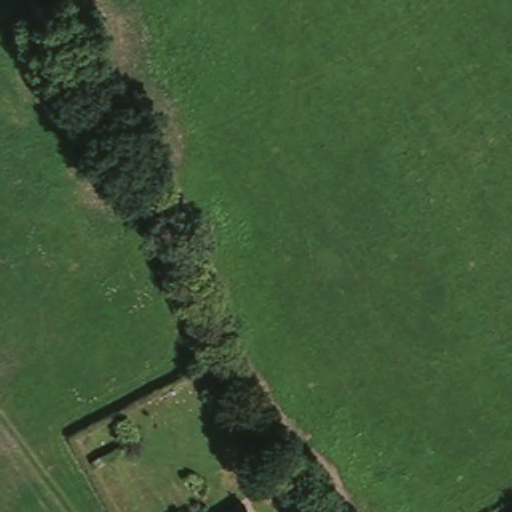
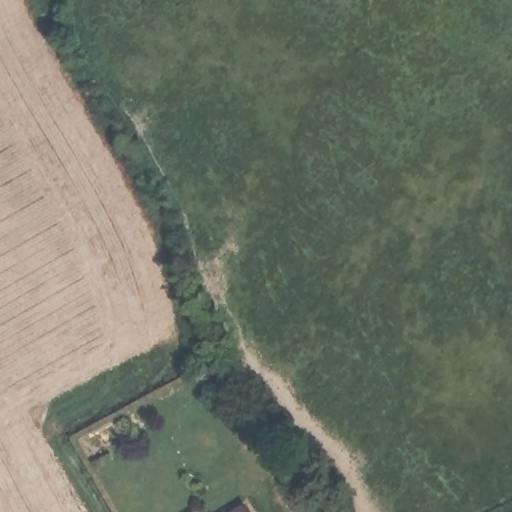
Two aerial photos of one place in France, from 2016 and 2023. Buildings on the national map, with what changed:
unchanged [(235,506),(238,512),(225,512),(235,506)]

